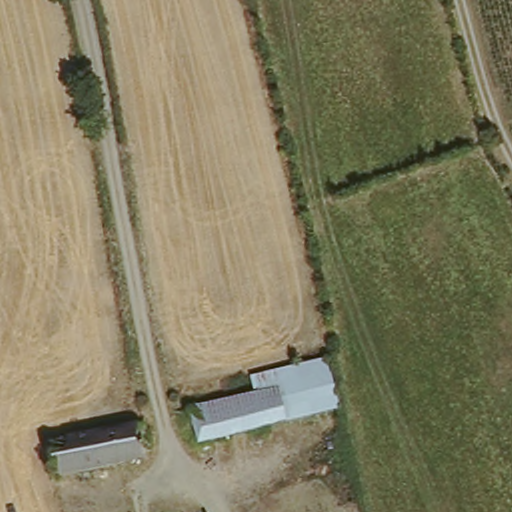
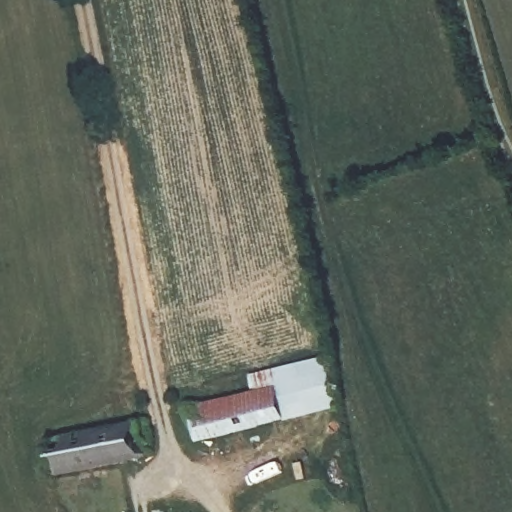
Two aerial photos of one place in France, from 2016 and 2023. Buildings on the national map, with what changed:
unchanged [(330,413),(285,424),(273,378),(322,366),(330,413)]
unchanged [(255,397),(251,384),(273,378),(285,424),(263,429),(255,397)]
unchanged [(255,397),(263,429),(199,446),(190,413),(255,397)]
unchanged [(149,463),(121,467),(55,479),(48,447),(141,428),(149,463)]

